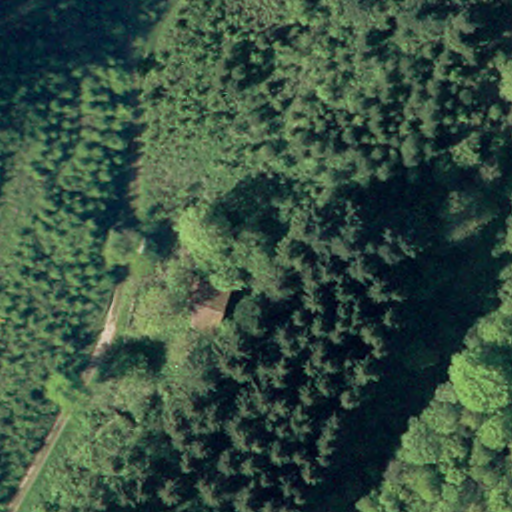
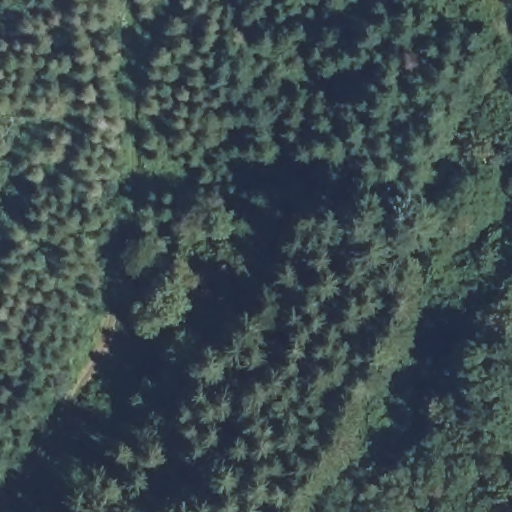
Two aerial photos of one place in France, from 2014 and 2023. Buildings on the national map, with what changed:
unchanged [(202,267),(237,278),(217,333),(185,322),(202,267)]

